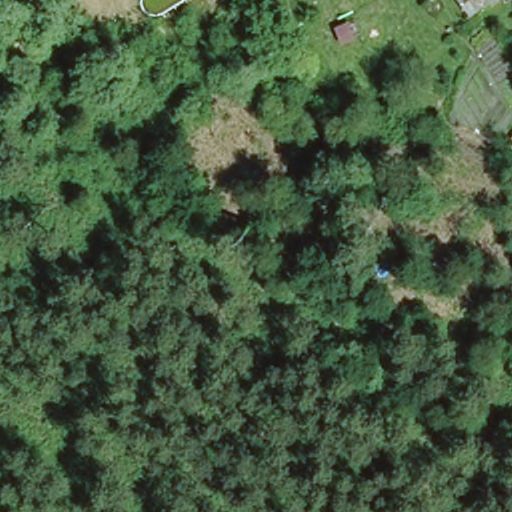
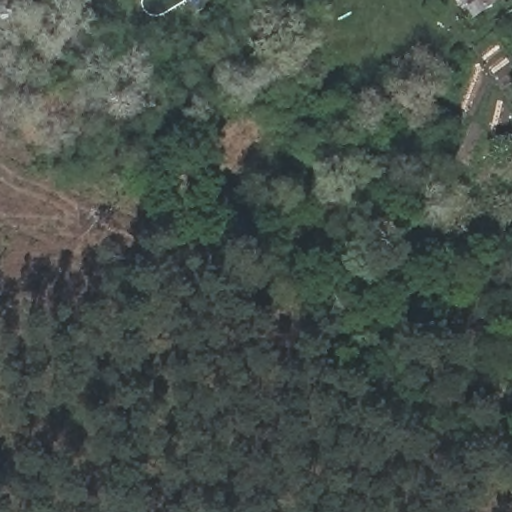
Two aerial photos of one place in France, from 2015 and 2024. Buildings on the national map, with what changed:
unchanged [(473,15),(460,0),(491,0),(473,15)]

